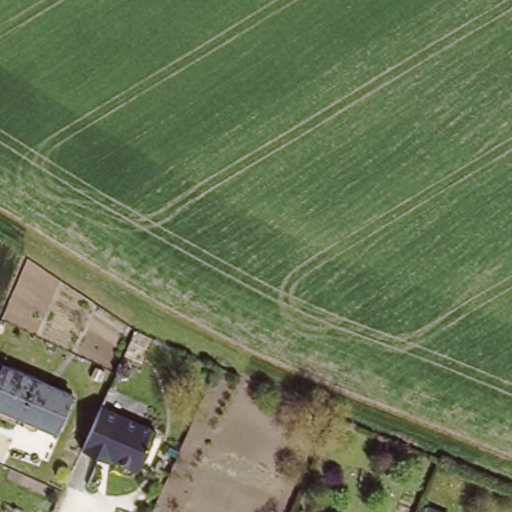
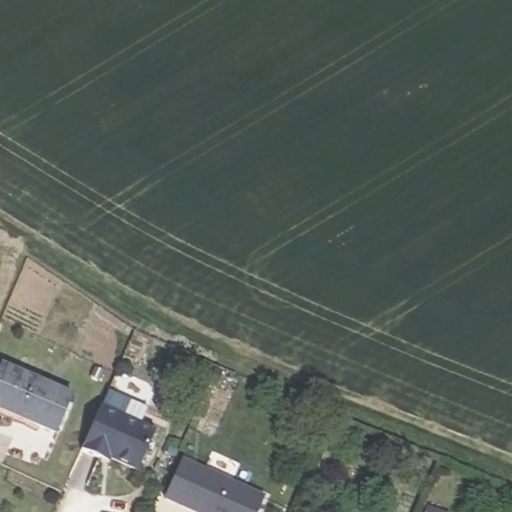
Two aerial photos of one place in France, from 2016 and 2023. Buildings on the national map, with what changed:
unchanged [(72,396),(56,434),(0,411),(0,374),(3,367),(72,396)]
unchanged [(137,468),(102,452),(100,457),(81,448),(101,404),(155,429),(137,468)]
new [(181,458),(265,496),(258,512),(188,512),(162,500),(181,458)]
new [(431,508),(441,512),(430,512),(431,508)]

